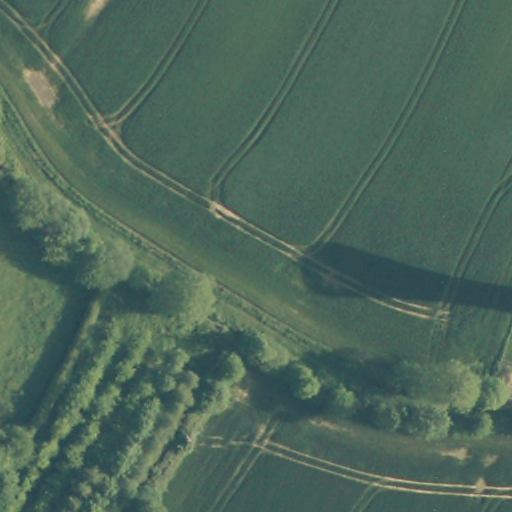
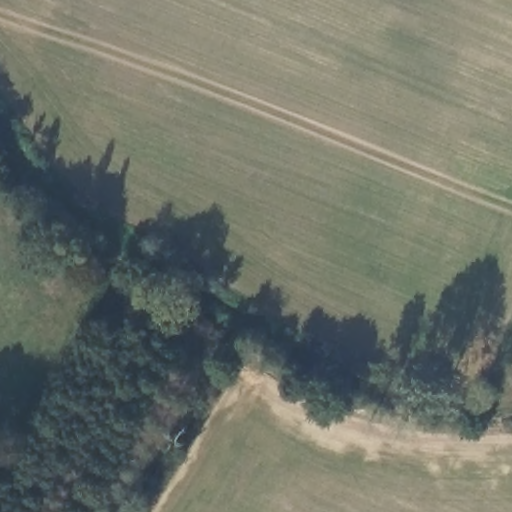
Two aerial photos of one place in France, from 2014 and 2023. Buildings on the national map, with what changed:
[]

